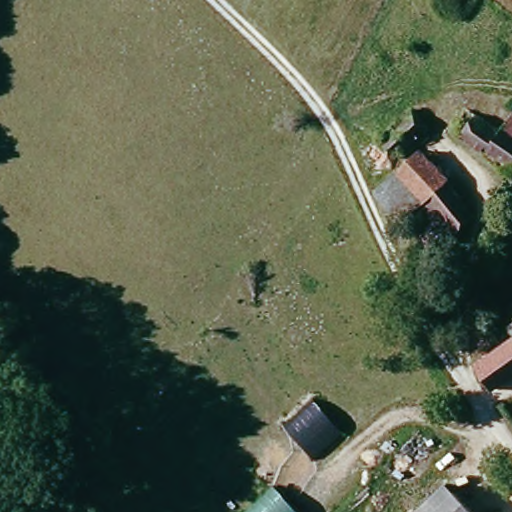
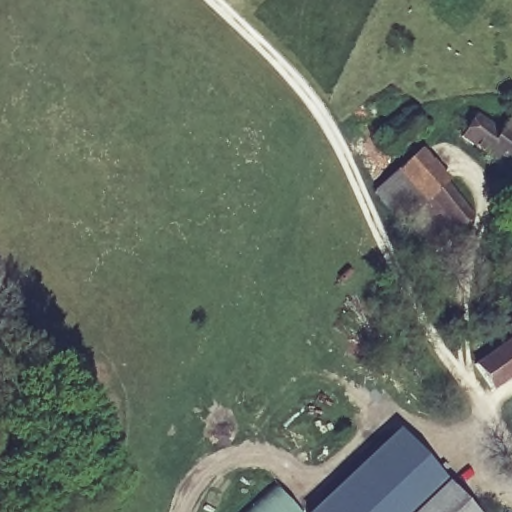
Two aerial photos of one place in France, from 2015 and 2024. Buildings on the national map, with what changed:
unchanged [(461,109),(494,135),(499,128),(512,138),(512,176),(449,128),(461,109)]
unchanged [(408,116),(424,133),(390,167),(376,150),(408,116)]
unchanged [(415,154),(446,188),(444,192),(472,220),(456,240),(396,173),(415,154)]
unchanged [(444,255),(413,220),(405,229),(376,195),(383,186),(396,173),(456,240),(444,255)]
unchanged [(509,326),(512,324),(512,331),(509,326)]
unchanged [(473,363),(512,332),(512,374),(492,389),(473,363)]
demolished [(339,429),(308,456),(285,425),(315,399),(339,429)]
new [(412,512),(310,512),(397,429),(445,479),(440,484),(412,512)]
unchanged [(440,484),(469,512),(412,512),(440,484)]
unchanged [(275,488),(297,512),(248,512),(275,488)]

